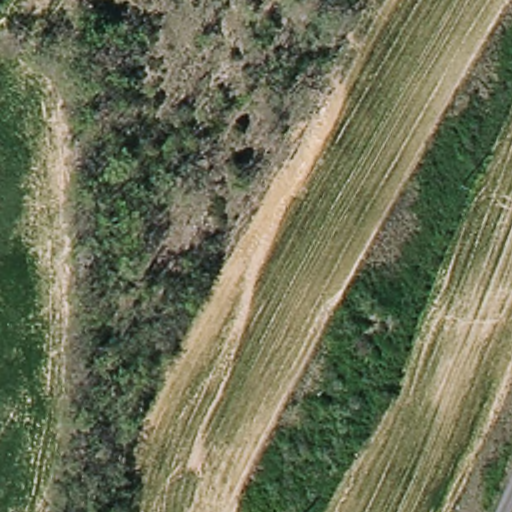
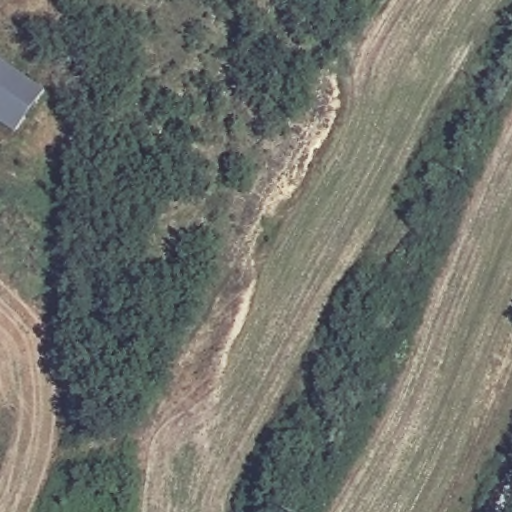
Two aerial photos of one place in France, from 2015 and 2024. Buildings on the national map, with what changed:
new [(0,122),(0,61),(42,90),(15,132),(0,122)]

